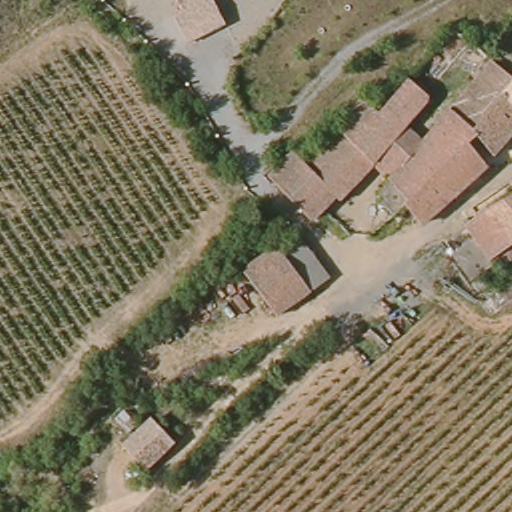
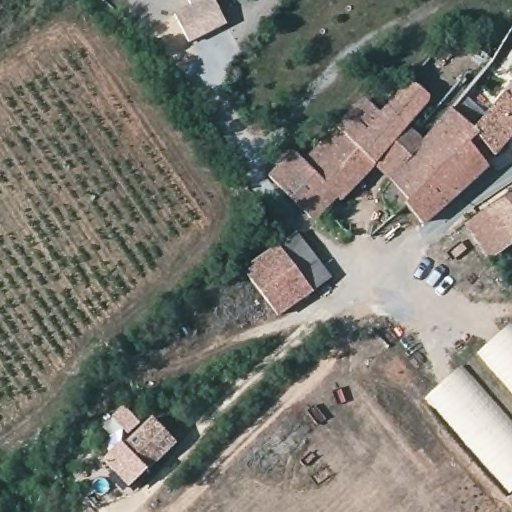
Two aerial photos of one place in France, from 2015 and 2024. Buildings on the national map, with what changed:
unchanged [(190,41),(174,9),(190,1),(190,0),(218,0),(227,22),(190,41)]
demolished [(450,29),(483,55),(475,66),(441,37),(450,29)]
unchanged [(508,75),(511,79),(471,126),(475,132),(468,137),(458,128),(464,122),(446,107),(488,59),(508,75)]
unchanged [(507,116),(512,121),(512,127),(490,150),(475,132),(471,126),(511,79),(508,75),(512,71),(512,112),(507,116)]
unchanged [(406,79),(425,94),(425,99),(403,123),(370,160),(334,124),(355,101),(360,101),(364,101),(368,101),(378,110),(406,79)]
unchanged [(392,212),(380,198),(379,187),(388,178),(385,175),(419,138),(446,107),(464,122),(458,128),(468,137),(466,140),(485,163),(447,197),(420,220),(411,211),(406,216),(392,212)]
unchanged [(372,162),(370,160),(403,123),(419,138),(385,175),(372,162)]
unchanged [(372,162),(340,196),(334,192),(300,159),(334,124),(370,160),(372,162)]
unchanged [(313,213),(306,214),(267,174),(289,152),(300,159),(334,192),(313,213)]
unchanged [(507,251),(493,259),(488,261),(463,225),(512,195),(512,246),(507,251)]
unchanged [(291,235),(325,278),(313,287),(280,312),(246,267),(280,243),(291,235)]
unchanged [(503,270),(493,259),(507,251),(512,246),(512,263),(503,270)]
new [(512,324),(512,391),(477,352),(512,324)]
new [(512,420),(512,491),(510,492),(426,397),(463,365),(512,420)]
unchanged [(126,442),(155,416),(176,440),(147,465),(126,442)]

